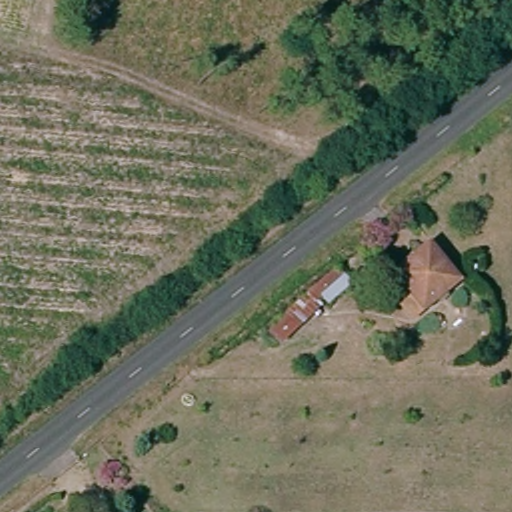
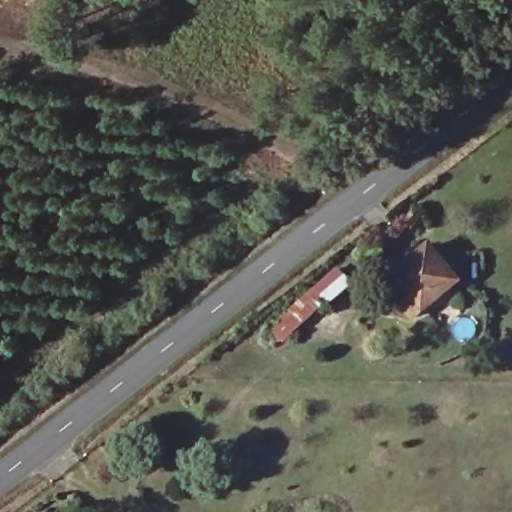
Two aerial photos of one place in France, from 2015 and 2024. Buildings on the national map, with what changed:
unchanged [(467,290),(418,324),(409,312),(419,303),(405,286),(442,260),(467,290)]
unchanged [(278,348),(261,332),(338,267),(354,286),(278,348)]

